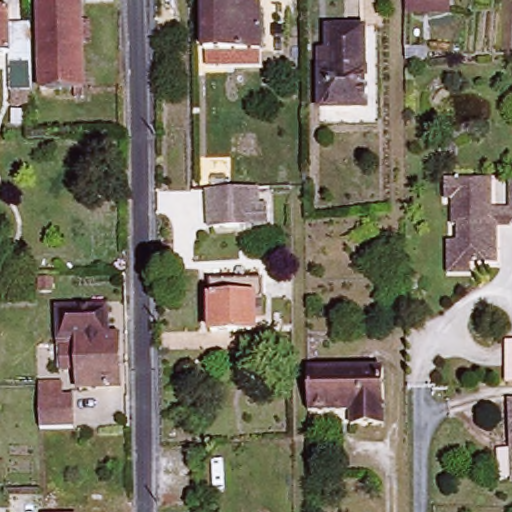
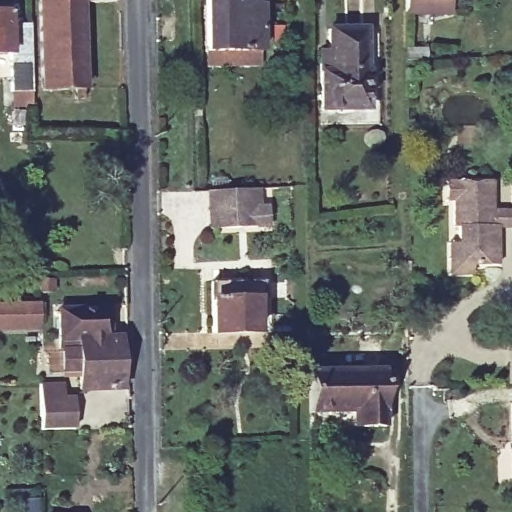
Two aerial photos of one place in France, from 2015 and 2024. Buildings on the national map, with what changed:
unchanged [(77,3),(79,90),(35,90),(34,0),(110,0),(111,2),(77,3)]
unchanged [(258,6),(258,50),(201,50),(201,0),(226,0),(226,6),(258,6)]
unchanged [(405,15),(405,0),(449,0),(448,14),(405,15)]
unchanged [(5,106),(5,92),(4,52),(0,53),(0,13),(2,13),(2,25),(25,24),(26,92),(27,106),(5,106)]
unchanged [(365,30),(365,110),(320,110),(319,67),(319,52),(327,53),(327,30),(365,30)]
unchanged [(453,182),(492,182),(492,214),(512,214),(512,227),(492,227),(492,234),(497,240),(497,266),(471,266),(471,276),(448,276),(448,245),(457,245),(457,228),(452,228),(453,182)]
unchanged [(266,226),(236,228),(206,230),(204,192),(251,190),(252,208),(265,207),(266,226)]
unchanged [(258,294),(259,327),(214,327),(214,295),(258,294)]
new [(36,303),(37,330),(0,331),(0,305),(36,303)]
unchanged [(70,348),(59,348),(57,307),(107,306),(108,336),(119,336),(119,390),(77,390),(77,368),(70,368),(70,348)]
new [(512,382),(510,382),(509,344),(512,344),(512,382)]
unchanged [(383,369),(384,426),(350,426),(350,413),(309,414),(308,370),(383,369)]
unchanged [(39,388),(60,387),(60,401),(71,401),(72,431),(40,432),(39,388)]

